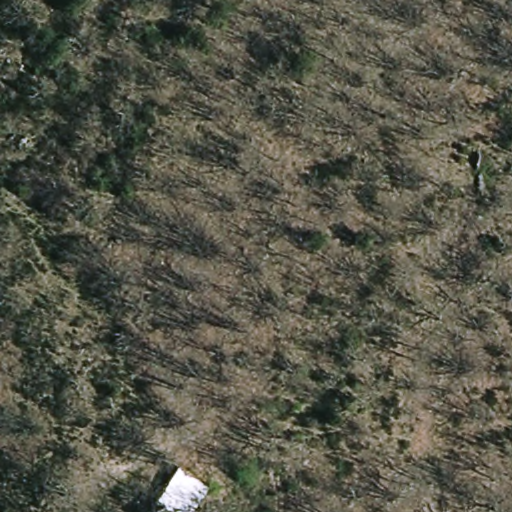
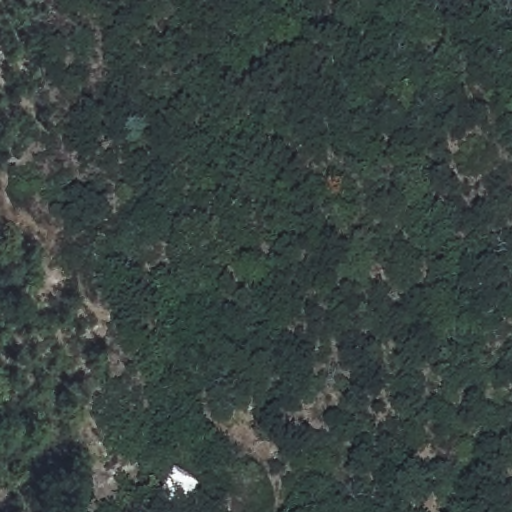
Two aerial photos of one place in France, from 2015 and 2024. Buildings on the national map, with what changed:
unchanged [(201,443),(232,458),(210,502),(177,486),(201,443)]

